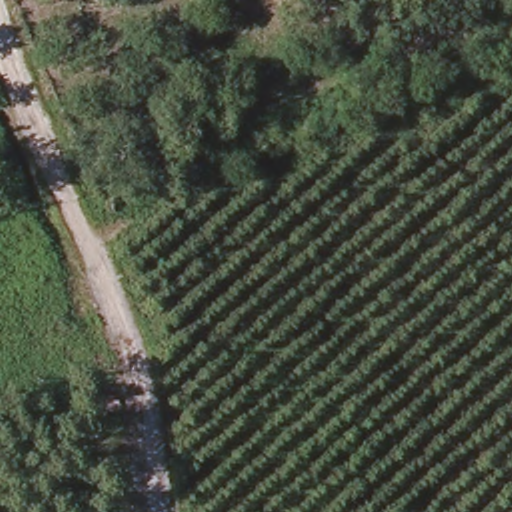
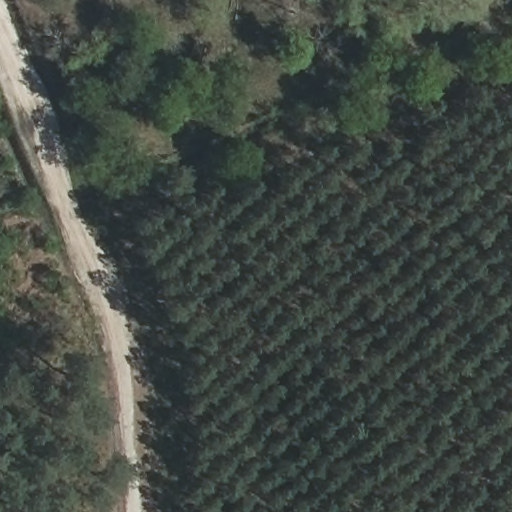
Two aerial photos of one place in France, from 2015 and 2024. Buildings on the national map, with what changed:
[]

